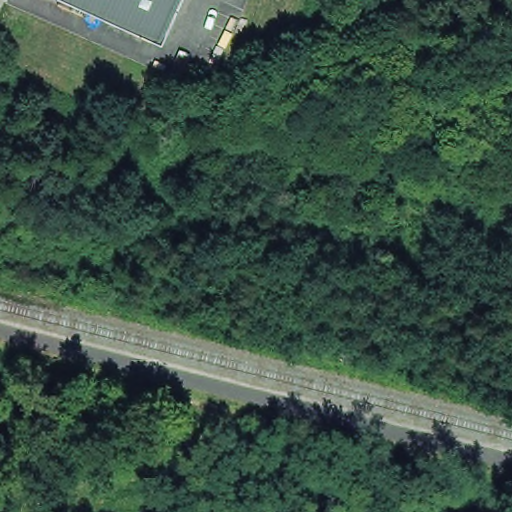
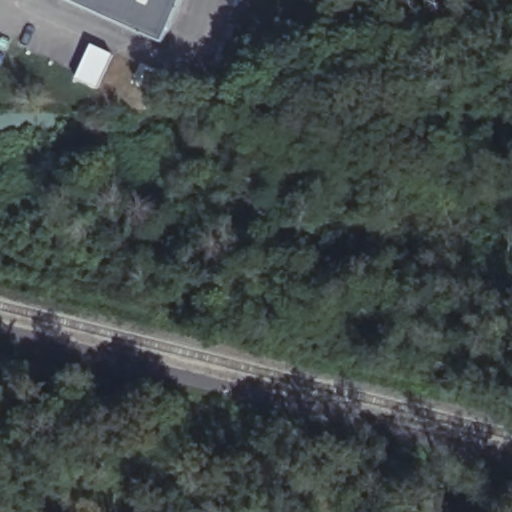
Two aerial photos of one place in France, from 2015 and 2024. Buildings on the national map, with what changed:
unchanged [(68,0),(181,0),(162,41),(68,0)]

